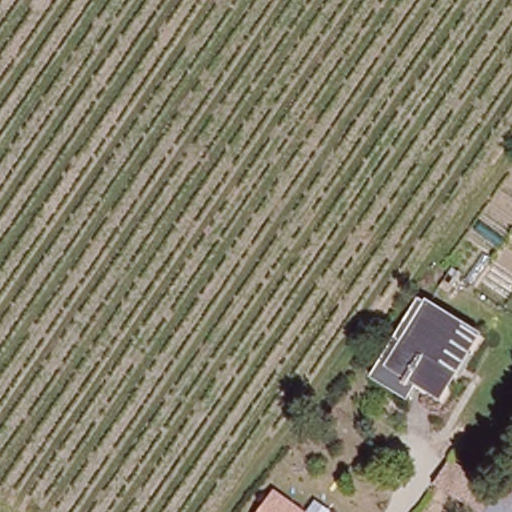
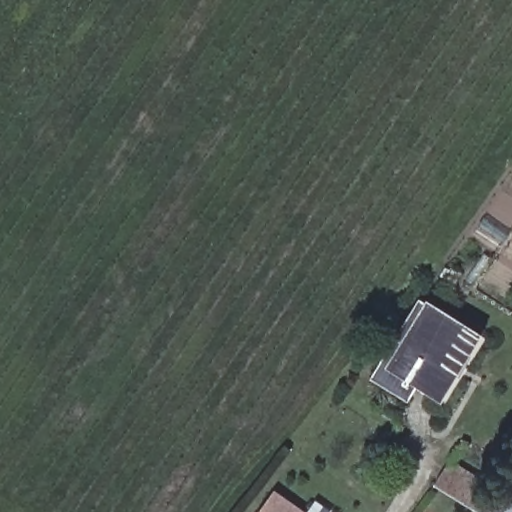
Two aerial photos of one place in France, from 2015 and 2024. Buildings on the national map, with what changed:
unchanged [(414,290),(426,298),(483,333),(442,400),(414,385),(406,402),(366,377),(414,290)]
unchanged [(512,470),(512,512),(485,512),(512,470)]
unchanged [(305,512),(262,512),(277,492),(305,512)]

